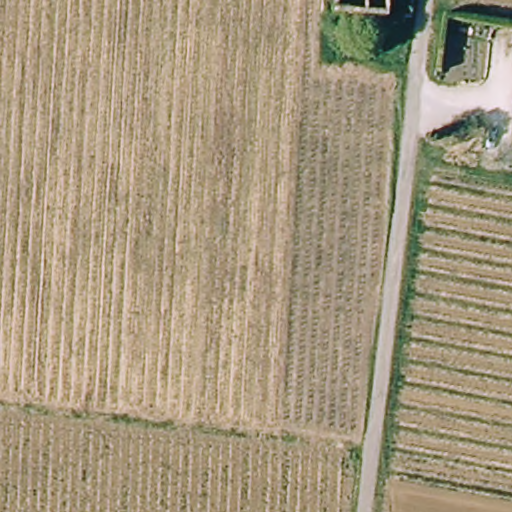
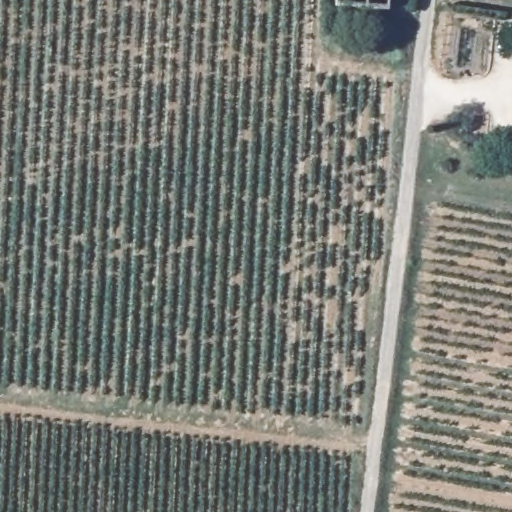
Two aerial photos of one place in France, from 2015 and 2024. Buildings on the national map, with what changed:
unchanged [(368,8),(369,0),(396,0),(395,11),(368,8)]

